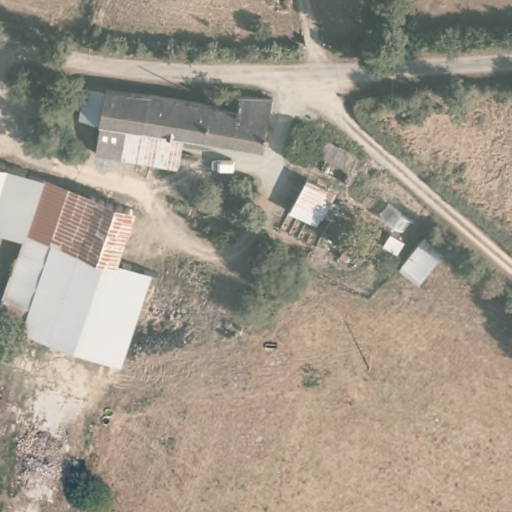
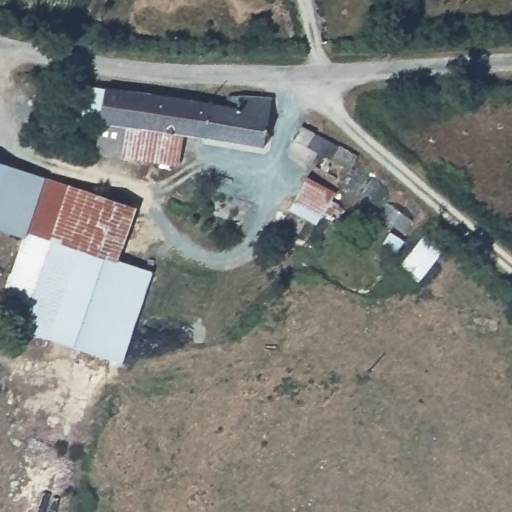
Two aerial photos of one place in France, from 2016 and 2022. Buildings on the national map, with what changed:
unchanged [(274,85),(267,133),(184,124),(105,115),(105,110),(87,106),(90,82),(102,84),(103,79),(200,92),(230,95),(230,83),(274,85)]
unchanged [(184,124),(181,163),(102,155),(105,115),(184,124)]
unchanged [(350,154),(343,166),(312,150),(306,160),(284,147),(297,126),(348,151),(350,154)]
unchanged [(31,225),(29,234),(0,225),(0,159),(44,172),(31,225)]
unchanged [(136,200),(121,253),(83,242),(31,225),(44,172),(136,200)]
unchanged [(323,212),(297,201),(305,182),(330,193),(323,212)]
unchanged [(54,335),(49,333),(4,319),(23,261),(29,234),(31,225),(83,242),(71,280),(54,335)]
unchanged [(400,265),(426,232),(450,251),(421,282),(400,265)]
unchanged [(54,335),(71,280),(83,242),(121,253),(120,256),(154,269),(124,357),(54,335)]

